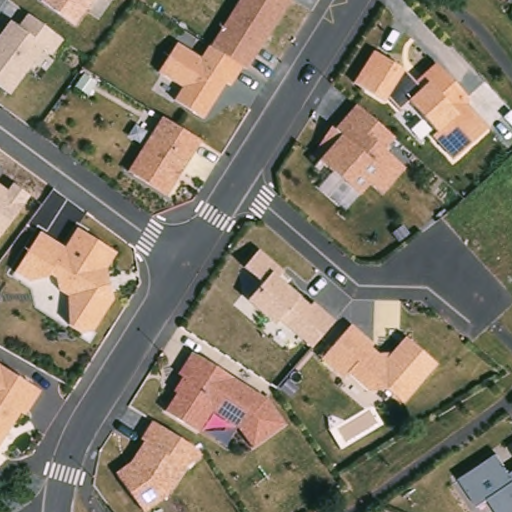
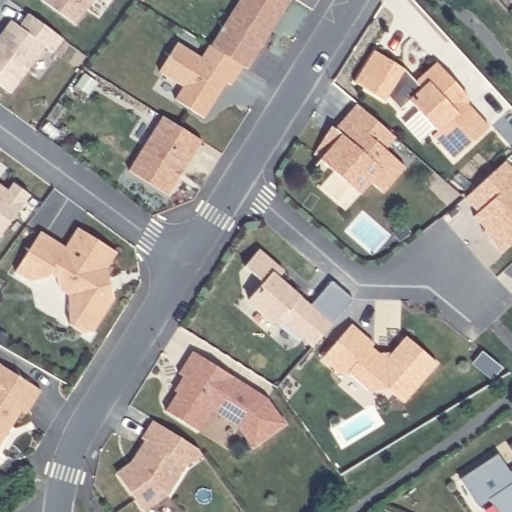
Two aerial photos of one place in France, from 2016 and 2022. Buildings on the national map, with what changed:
unchanged [(76,24),(43,0),(92,0),(76,24)]
unchanged [(232,88),(227,84),(204,121),(175,101),(183,88),(160,72),(178,43),(202,57),(240,0),(291,0),(232,88)]
unchanged [(19,24),(29,12),(65,39),(54,52),(45,46),(11,94),(0,86),(0,31),(10,17),(19,24)]
unchanged [(406,71),(414,83),(437,64),(467,96),(463,100),(487,130),(454,161),(409,102),(399,109),(390,97),(386,103),(353,85),(373,51),(406,71)]
unchanged [(394,141),(383,152),(405,169),(383,194),(371,183),(357,195),(312,156),(328,130),(337,127),(356,106),(394,141)]
unchanged [(201,143),(166,196),(129,172),(163,118),(201,143)]
new [(501,252),(482,231),(485,228),(472,215),(477,212),(465,198),(505,161),(512,169),(512,242),(501,252)]
unchanged [(12,183),(30,196),(0,236),(0,184),(9,189),(12,183)]
unchanged [(116,254),(107,269),(112,297),(87,336),(67,324),(67,296),(59,290),(58,279),(50,276),(31,285),(16,272),(41,234),(65,249),(77,230),(116,254)]
unchanged [(283,271),(277,277),(297,295),(310,306),(315,303),(333,321),(310,347),(277,328),(245,302),(262,281),(244,269),(258,252),(283,271)]
unchanged [(373,341),(368,347),(378,355),(390,356),(404,337),(436,363),(402,402),(387,390),(365,392),(322,358),(350,326),(373,341)]
unchanged [(263,396),(286,422),(253,446),(212,413),(199,432),(167,411),(192,354),(263,396)]
unchanged [(27,411),(20,412),(0,446),(0,366),(40,391),(27,411)]
unchanged [(143,441),(140,440),(150,420),(201,451),(187,463),(164,503),(152,512),(143,512),(116,473),(131,461),(143,441)]
unchanged [(512,471),(512,512),(498,512),(489,499),(477,505),(460,477),(498,453),(512,471)]

